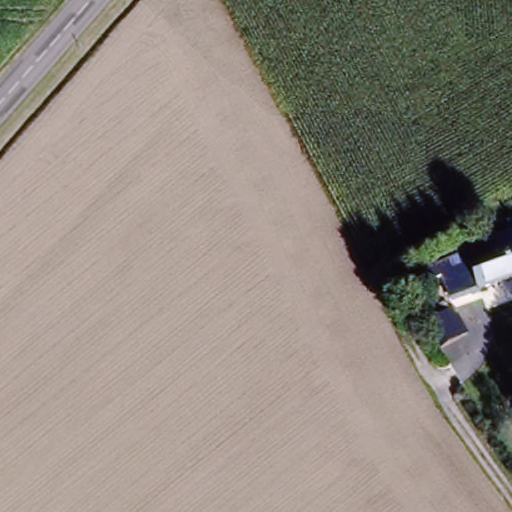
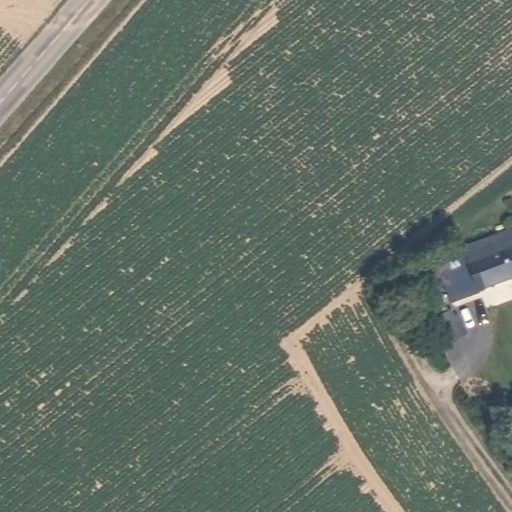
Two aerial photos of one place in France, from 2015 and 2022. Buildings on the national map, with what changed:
unchanged [(450,303),(437,268),(512,239),(512,279),(450,303)]
unchanged [(447,317),(463,342),(442,357),(424,332),(447,317)]

